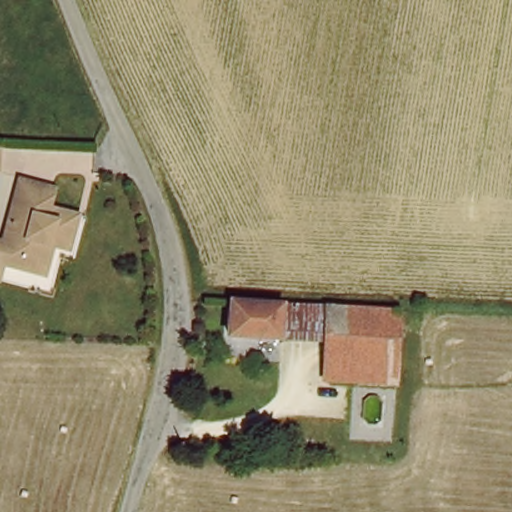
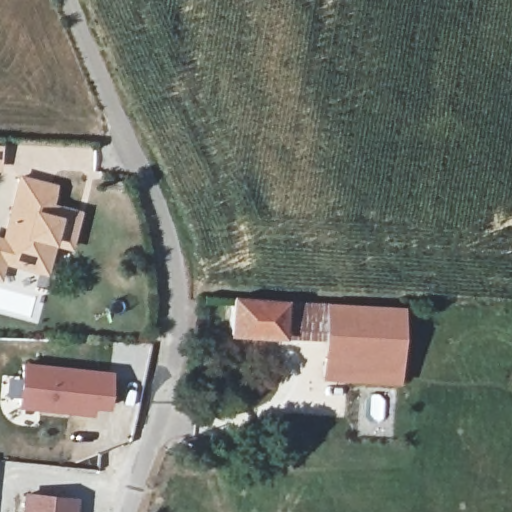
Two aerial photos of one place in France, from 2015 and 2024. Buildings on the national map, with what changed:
unchanged [(0,165),(0,145),(5,145),(3,166),(0,165)]
unchanged [(0,238),(12,241),(29,178),(63,188),(58,206),(88,214),(78,249),(62,244),(54,274),(31,268),(7,262),(3,278),(0,277),(0,238)]
unchanged [(401,384),(329,378),(331,342),(235,335),(236,298),(406,311),(401,384)]
new [(22,364),(112,373),(108,412),(93,410),(91,418),(17,409),(22,364)]
new [(77,500),(76,512),(21,512),(23,494),(77,500)]

